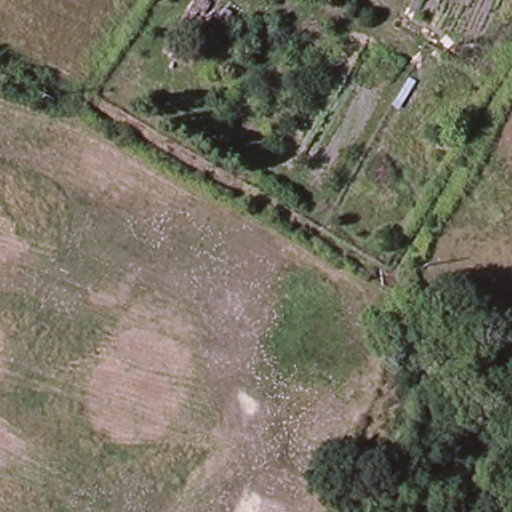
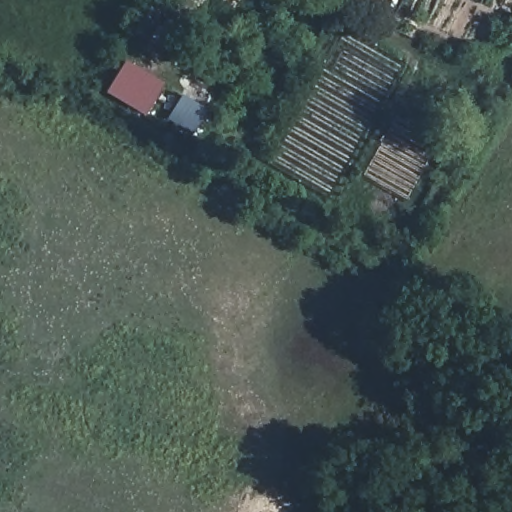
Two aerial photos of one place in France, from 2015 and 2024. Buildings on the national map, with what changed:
new [(106,94),(125,62),(164,83),(143,117),(106,94)]

